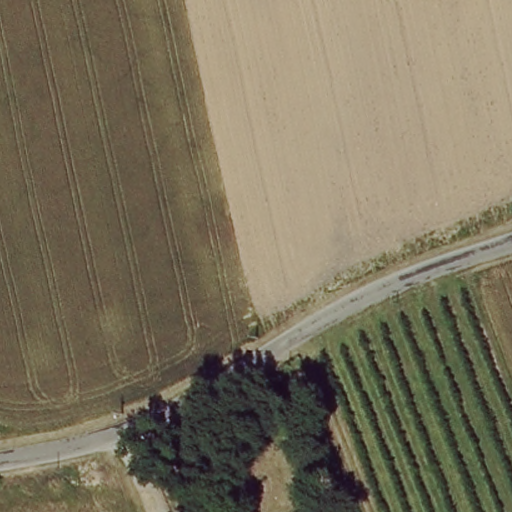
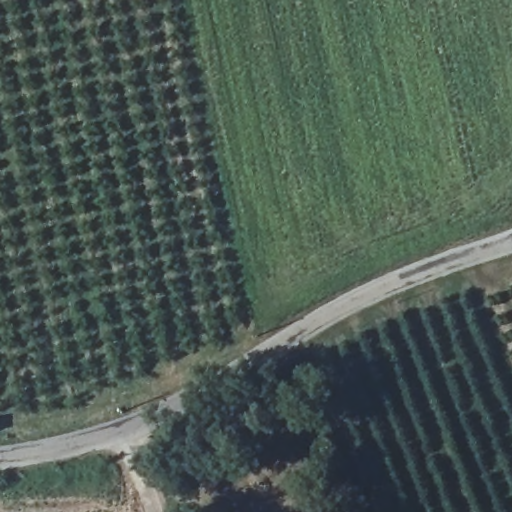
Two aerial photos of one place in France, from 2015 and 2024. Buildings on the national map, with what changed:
[]

